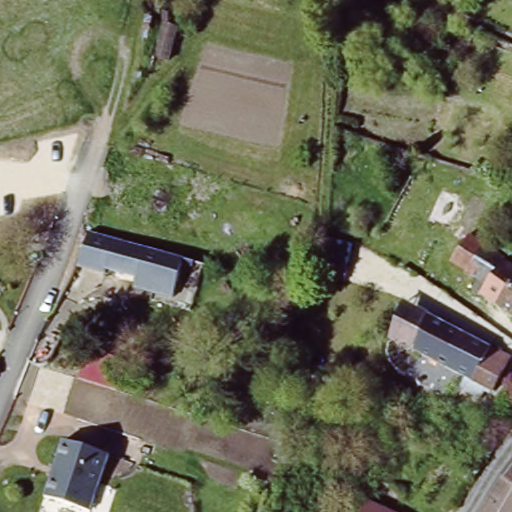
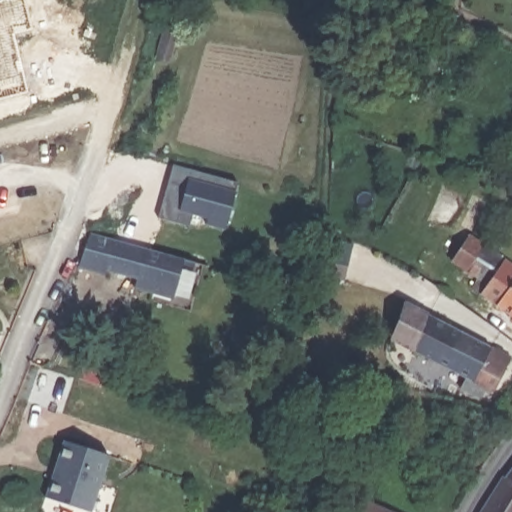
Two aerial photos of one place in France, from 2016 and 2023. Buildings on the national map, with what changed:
unchanged [(156,57),(164,24),(175,26),(167,59),(156,57)]
new [(176,163),(206,171),(241,181),(227,229),(208,223),(210,217),(195,213),(192,226),(161,217),(169,189),(176,163)]
unchanged [(174,300),(79,271),(90,232),(185,260),(174,300)]
unchanged [(473,291),(480,283),(471,275),(453,261),(474,236),(491,250),(508,262),(512,265),(512,322),(496,309),(481,297),(473,291)]
unchanged [(384,336),(402,300),(425,312),(406,348),(384,336)]
unchanged [(487,347),(462,390),(441,378),(445,369),(406,348),(425,312),(487,347)]
unchanged [(487,347),(506,358),(489,391),(483,388),(478,397),(473,394),(472,396),(462,390),(487,347)]
unchanged [(494,407),(488,406),(495,391),(500,393),(494,407)]
unchanged [(112,454),(111,459),(103,482),(94,511),(48,496),(67,439),(91,447),(112,454)]
unchanged [(497,475),(512,455),(512,486),(497,475)]
unchanged [(479,505),(497,475),(512,486),(512,512),(475,512),(479,505)]
unchanged [(367,499),(392,512),(362,512),(367,499)]

